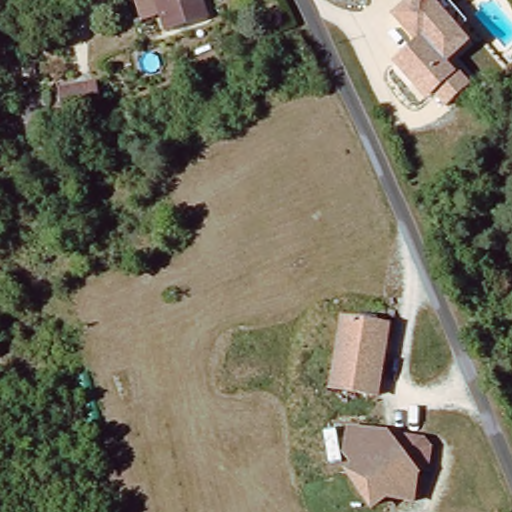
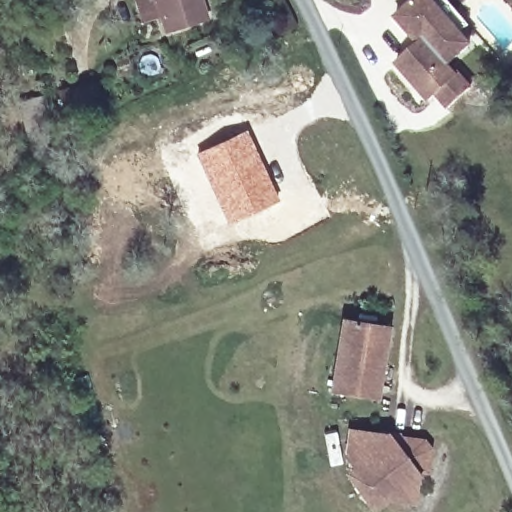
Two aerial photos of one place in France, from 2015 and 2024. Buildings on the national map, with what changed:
unchanged [(132,0),(200,0),(207,19),(165,35),(159,19),(140,24),(132,0)]
unchanged [(425,39),(418,44),(396,18),(417,0),(428,0),(433,5),(439,0),(447,0),(469,24),(459,32),(468,45),(443,67),(425,39)]
unchanged [(402,90),(386,66),(418,44),(425,39),(446,72),(457,65),(473,91),(446,111),(433,94),(426,97),(413,106),(402,90)]
unchanged [(63,98),(94,87),(101,108),(70,119),(63,98)]
new [(246,129),(280,200),(227,225),(194,153),(246,129)]
unchanged [(343,317),(395,324),(382,399),(331,388),(343,317)]
unchanged [(424,437),(434,449),(424,475),(414,505),(391,503),(377,512),(372,512),(345,474),(351,468),(343,455),(349,429),(389,435),(424,437)]

